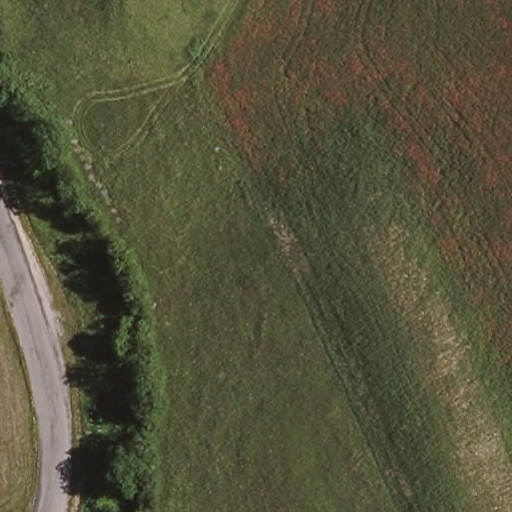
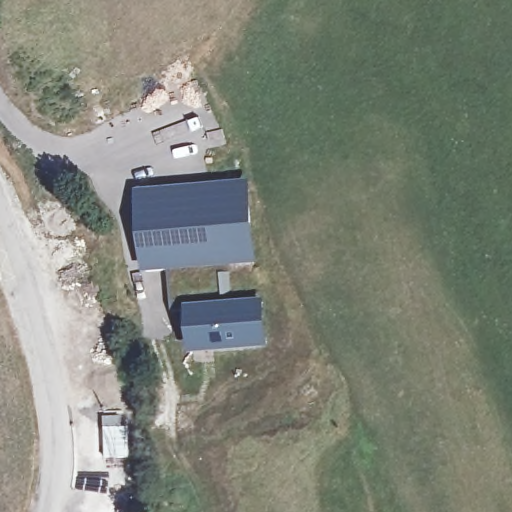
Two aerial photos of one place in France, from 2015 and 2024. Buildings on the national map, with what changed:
new [(269,346),(191,353),(186,307),(171,310),(169,270),(144,271),(135,189),(250,179),(258,262),(253,262),(256,298),(264,297),(269,346)]

